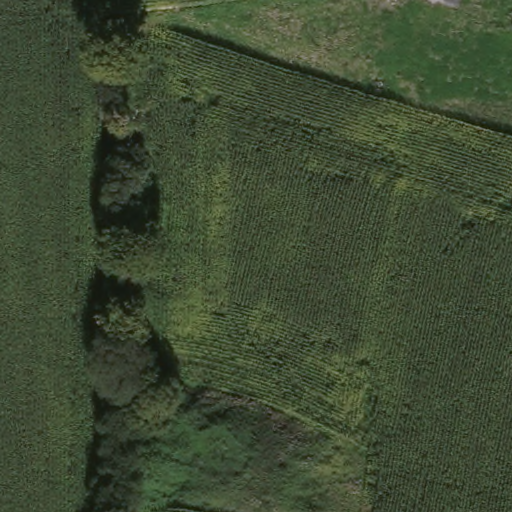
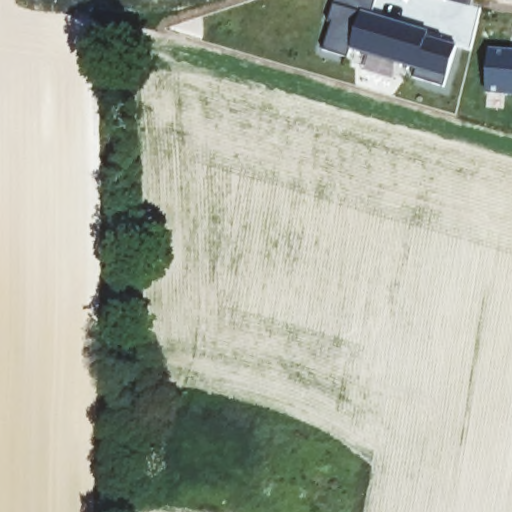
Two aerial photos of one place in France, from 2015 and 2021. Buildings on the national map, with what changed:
new [(338,0),(378,0),(373,18),(429,34),(443,38),(442,42),(458,46),(445,89),(415,80),(417,70),(354,51),(351,60),(326,53),(334,26),(330,25),(338,0)]

